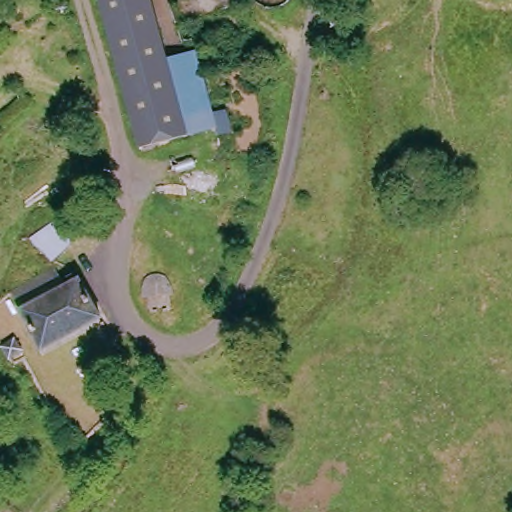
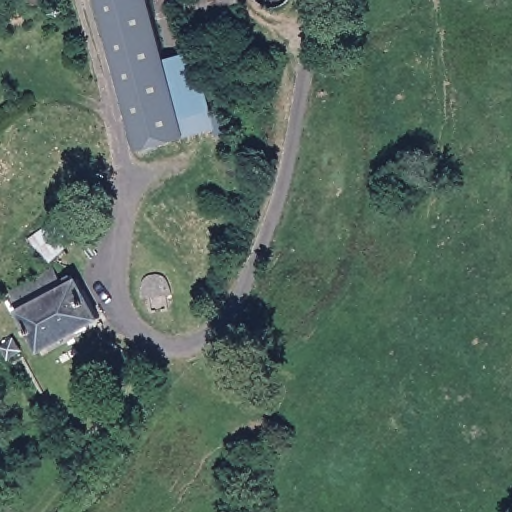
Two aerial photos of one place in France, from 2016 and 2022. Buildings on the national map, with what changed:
unchanged [(144,147),(103,0),(153,0),(170,62),(189,134),(144,147)]
unchanged [(201,54),(222,124),(189,134),(170,62),(201,54)]
unchanged [(56,267),(32,242),(60,222),(81,205),(92,221),(69,239),(77,245),(56,267)]
unchanged [(47,352),(13,294),(59,270),(70,288),(73,285),(70,278),(77,275),(81,281),(84,280),(104,319),(47,352)]
unchanged [(147,275),(158,272),(171,278),(173,292),(143,296),(142,282),(147,275)]
unchanged [(29,337),(32,348),(16,352),(13,341),(29,337)]

